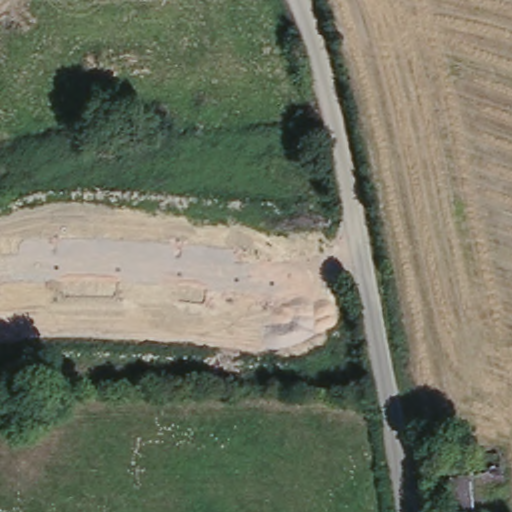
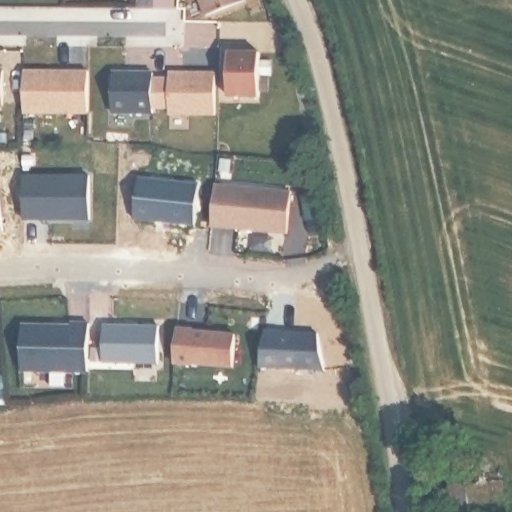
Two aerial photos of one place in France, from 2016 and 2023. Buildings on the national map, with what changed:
new [(204,0),(226,0),(207,7),(204,0)]
new [(230,54),(261,54),(261,98),(230,98),(230,54)]
new [(2,72),(2,107),(0,107),(0,72),(2,72)]
new [(89,72),(89,116),(24,117),(24,72),(89,72)]
new [(115,72),(155,74),(155,79),(155,114),(115,113),(115,72)]
new [(155,79),(170,80),(170,74),(217,73),(217,115),(155,114),(155,79)]
new [(85,177),(86,214),(21,219),(19,181),(85,177)]
new [(291,189),(286,232),(214,226),(216,182),(291,189)]
new [(71,328),(72,325),(90,326),(89,373),(22,372),(22,327),(71,328)]
new [(157,330),(157,362),(105,361),(105,327),(157,330)]
new [(177,330),(194,331),(194,332),(236,336),(233,368),(191,365),(191,366),(175,365),(177,330)]
unchanged [(485,475),(491,512),(453,512),(447,480),(485,475)]

